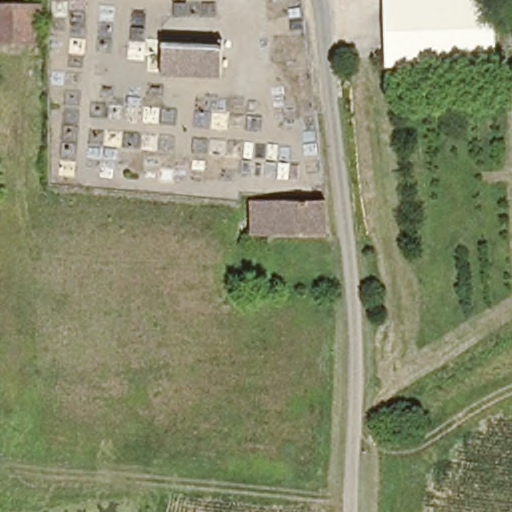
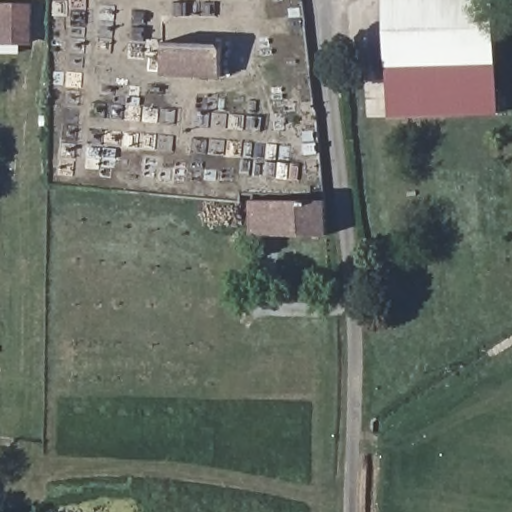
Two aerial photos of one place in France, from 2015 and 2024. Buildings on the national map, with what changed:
unchanged [(388,67),(383,0),(394,0),(492,0),(497,63),(388,67)]
unchanged [(26,42),(0,42),(0,7),(25,7),(37,7),(38,42),(26,42)]
unchanged [(202,41),(218,42),(222,42),(222,78),(162,71),(164,40),(175,40),(202,41)]
new [(497,63),(499,113),(388,117),(388,67),(497,63)]
unchanged [(279,233),(253,233),(252,199),(254,199),(278,200),(327,201),(327,234),(279,233)]

